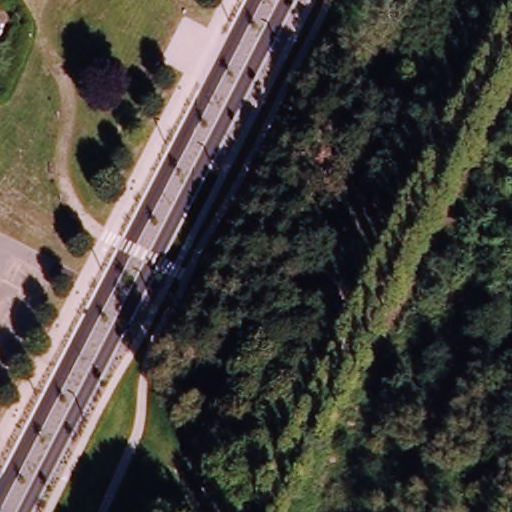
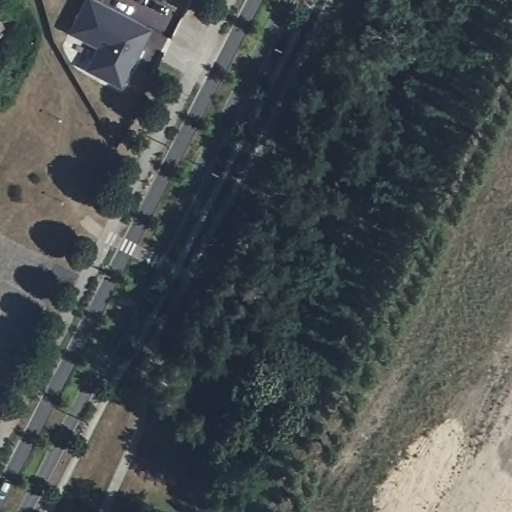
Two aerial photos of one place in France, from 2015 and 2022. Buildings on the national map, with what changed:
new [(96,0),(146,25),(135,45),(140,47),(121,85),(86,67),(97,45),(67,30),(83,0),(96,0)]
unchanged [(0,26),(0,23),(2,25),(0,26)]

